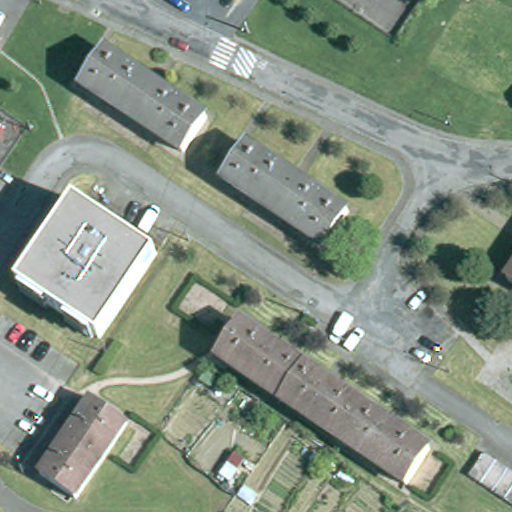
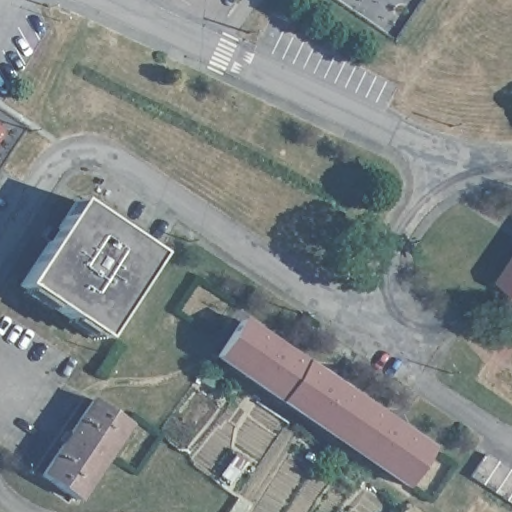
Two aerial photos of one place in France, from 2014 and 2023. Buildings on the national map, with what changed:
demolished [(512,32),(512,78),(464,45),(485,14),(512,32)]
demolished [(104,50),(207,118),(184,154),(80,85),(104,50)]
demolished [(325,248),(222,179),(245,144),(349,213),(325,248)]
unchanged [(75,202),(155,255),(100,339),(20,286),(75,202)]
unchanged [(508,281),(512,274),(512,283),(508,281)]
unchanged [(407,486),(216,357),(240,322),(430,451),(407,486)]
unchanged [(128,424),(77,500),(42,476),(92,400),(128,424)]
unchanged [(485,454),(511,472),(512,472),(512,505),(470,477),(485,454)]

